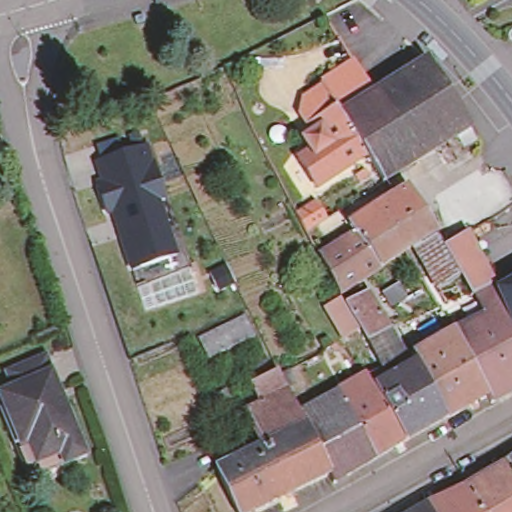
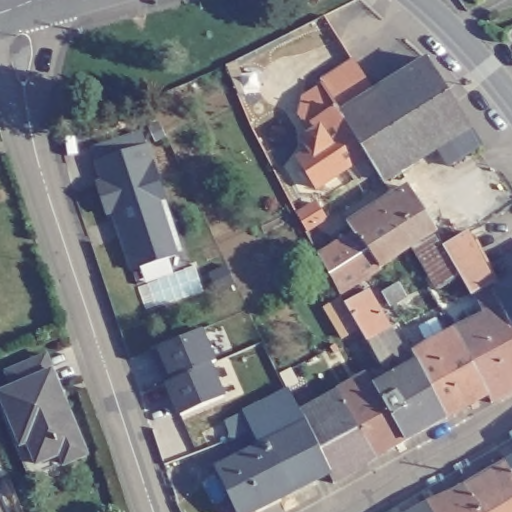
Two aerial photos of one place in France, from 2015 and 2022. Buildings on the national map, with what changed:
unchanged [(512,41),(508,34),(512,31),(512,41)]
unchanged [(441,82),(472,129),(384,185),(367,158),(341,117),(375,96),(428,61),(441,82)]
unchanged [(320,85),(354,63),(375,96),(341,117),(321,87),(320,85)]
unchanged [(312,135),(300,115),(302,100),(321,87),(341,117),(367,158),(317,190),(298,160),(311,152),(308,147),(304,140),(312,135)]
unchanged [(128,275),(112,217),(102,220),(93,187),(97,185),(90,165),(98,161),(96,151),(138,137),(142,149),(150,147),(166,202),(160,204),(176,257),(128,275)]
unchanged [(350,228),(408,191),(435,235),(415,249),(402,256),(377,272),(356,239),(350,228)]
unchanged [(445,251),(460,279),(440,292),(415,249),(435,235),(445,251)]
unchanged [(476,296),(471,298),(460,279),(445,251),(467,236),(495,287),(495,289),(487,292),(495,295),(497,295),(497,294),(503,291),(512,285),(512,394),(492,405),(487,397),(489,396),(456,334),(491,319),(480,305),(476,296)]
unchanged [(342,295),(340,296),(321,260),(356,239),(377,272),(342,295)]
unchanged [(382,295),(400,285),(407,299),(390,308),(382,295)]
unchanged [(383,371),(367,342),(361,331),(344,340),(328,308),(344,300),(361,290),(363,296),(368,293),(390,331),(406,360),(383,371)]
demolished [(201,340),(245,319),(255,338),(211,360),(201,340)]
new [(218,361),(212,363),(225,395),(178,416),(165,383),(170,381),(156,348),(201,328),(218,361)]
unchanged [(456,334),(489,396),(487,397),(446,420),(417,365),(413,356),(456,334)]
unchanged [(330,348),(335,345),(340,352),(335,355),(330,348)]
unchanged [(60,468),(55,458),(31,467),(23,445),(16,447),(0,408),(0,394),(9,390),(2,374),(43,357),(62,404),(60,405),(83,458),(60,468)]
unchanged [(372,389),(417,365),(446,420),(430,429),(403,445),(376,392),(375,393),(372,389)]
unchanged [(328,477),(300,416),(348,390),(355,405),(346,410),(375,461),(332,486),(328,477)]
unchanged [(287,498),(262,449),(245,413),(263,405),(288,392),(300,416),(328,477),(287,498)]
unchanged [(376,392),(403,445),(375,461),(346,410),(355,405),(375,393),(376,392)]
unchanged [(262,449),(287,498),(259,512),(236,512),(216,471),(262,449)]
unchanged [(512,462),(512,474),(506,465),(512,462)]
unchanged [(512,512),(481,512),(466,489),(506,465),(512,474),(512,512)]
unchanged [(466,489),(481,512),(431,512),(428,507),(466,489)]
new [(4,512),(0,512),(0,504),(4,512)]
unchanged [(431,512),(421,512),(428,507),(431,512)]

